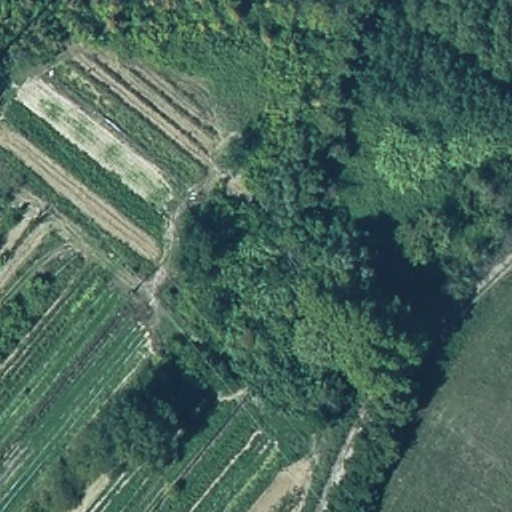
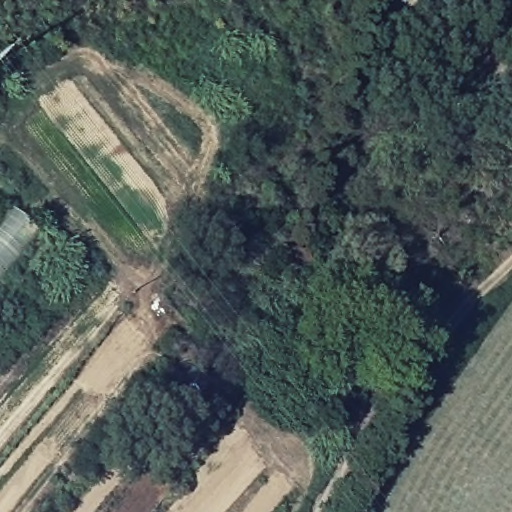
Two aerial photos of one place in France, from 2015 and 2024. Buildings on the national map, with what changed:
new [(10,208),(37,232),(0,279),(0,221),(10,208)]

